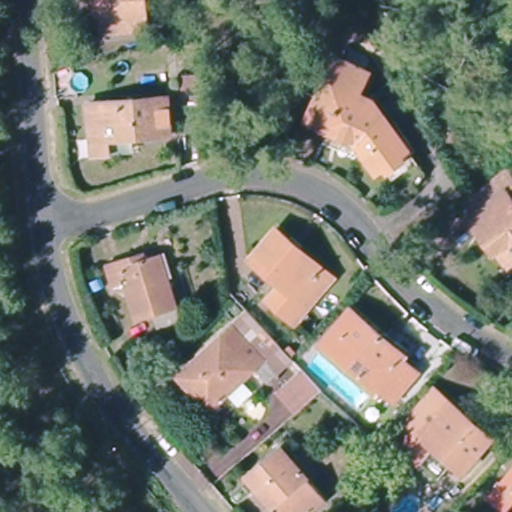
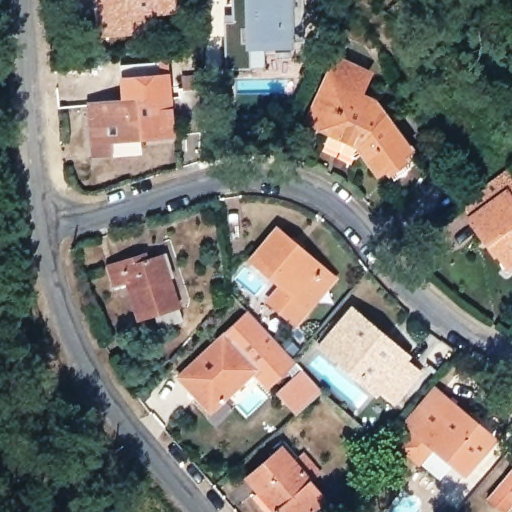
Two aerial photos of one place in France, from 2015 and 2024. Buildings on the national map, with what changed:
unchanged [(108,37),(107,20),(114,20),(112,0),(151,0),(153,35),(108,37)]
new [(263,70),(249,70),(225,71),(224,23),(231,23),(230,0),(302,0),(303,43),(303,50),(263,51),(263,70)]
unchanged [(386,166),(378,172),(361,146),(333,135),(313,126),(318,117),(341,63),(372,76),(364,99),(373,104),(377,102),(410,148),(403,155),(410,164),(392,176),(386,166)]
unchanged [(179,133),(174,90),(180,89),(180,86),(204,81),(200,130),(179,133)]
unchanged [(91,154),(91,138),(89,106),(164,97),(167,134),(107,141),(109,153),(91,154)]
unchanged [(512,172),(512,261),(507,265),(460,198),(466,193),(493,175),(507,164),(512,172)]
unchanged [(306,310),(293,323),(268,300),(280,286),(253,258),(279,230),(324,274),(332,283),(306,310)]
unchanged [(186,331),(170,337),(163,318),(140,324),(128,288),(115,291),(109,269),(134,261),(147,257),(150,265),(163,260),(186,331)]
unchanged [(288,354),(291,357),(266,382),(252,368),(211,408),(179,374),(246,309),(288,354)]
unchanged [(404,360),(402,363),(415,375),(390,403),(377,391),(372,395),(321,347),(352,312),(404,360)]
unchanged [(278,397),(302,374),(320,394),(295,416),(278,397)]
unchanged [(422,430),(414,424),(443,391),(452,398),(454,396),(480,419),(478,422),(495,437),(467,470),(439,445),(425,461),(407,446),(422,430)]
unchanged [(322,501),(311,512),(307,512),(304,509),(300,512),(274,512),(246,479),(279,451),(322,501)]
unchanged [(512,467),(512,498),(496,484),(512,467)]

